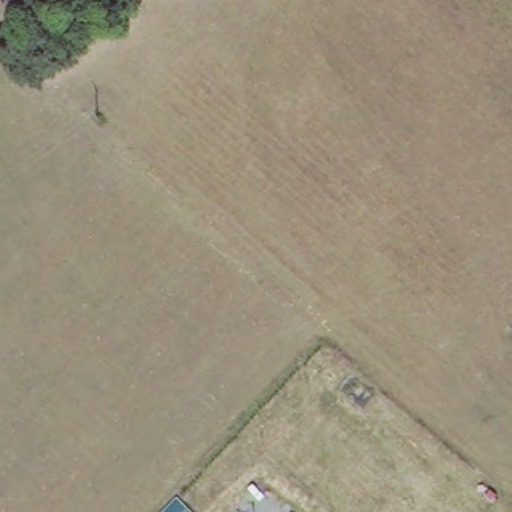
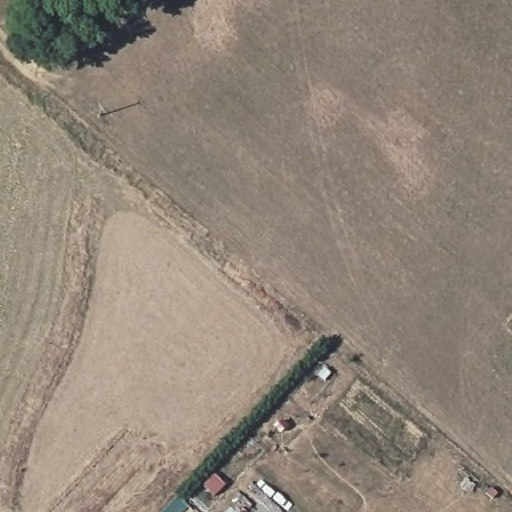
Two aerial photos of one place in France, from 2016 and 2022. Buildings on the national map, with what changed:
[]

